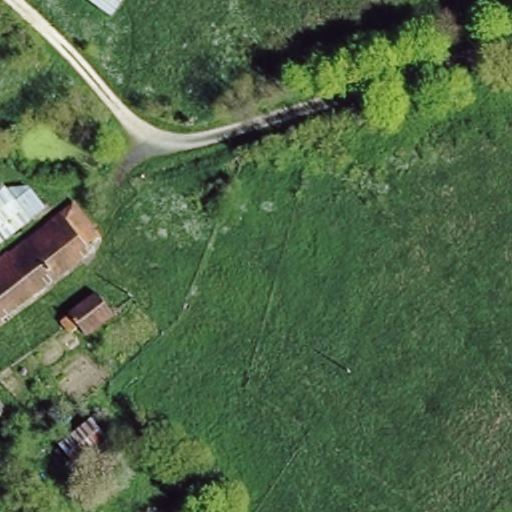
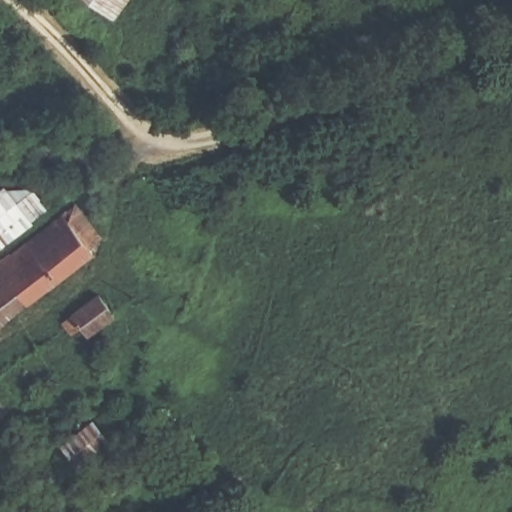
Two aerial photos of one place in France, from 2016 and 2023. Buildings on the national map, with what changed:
unchanged [(84,0),(131,0),(110,29),(78,7),(84,0)]
unchanged [(0,184),(12,199),(29,186),(42,204),(25,217),(0,236),(0,185),(0,184)]
unchanged [(95,237),(84,246),(89,252),(0,320),(0,258),(70,204),(95,237)]
unchanged [(115,314),(87,336),(80,327),(72,334),(62,322),(99,293),(115,314)]
unchanged [(7,408),(0,416),(0,401),(7,408)]
unchanged [(79,467),(61,446),(91,419),(110,440),(79,467)]

